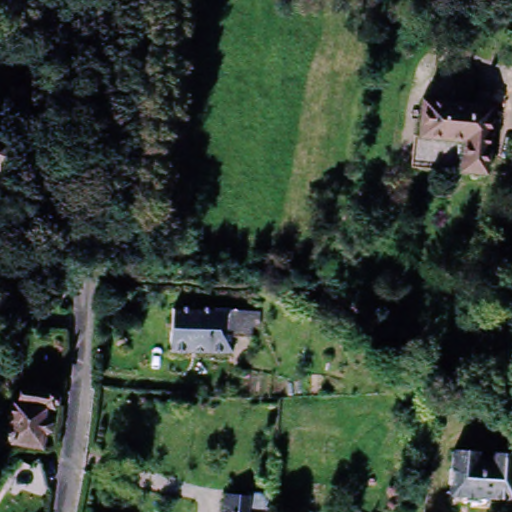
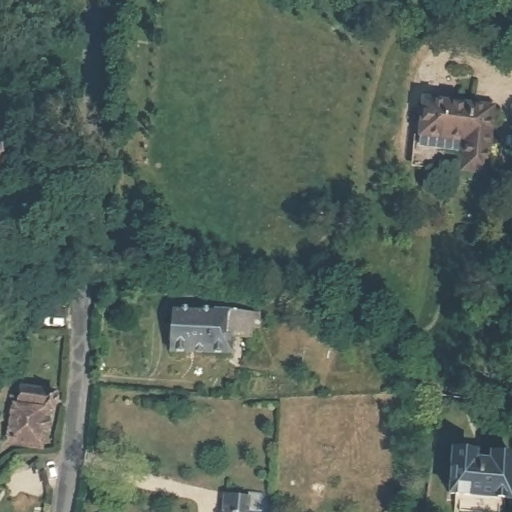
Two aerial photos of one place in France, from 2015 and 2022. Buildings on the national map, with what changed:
unchanged [(412,156),(418,95),(486,100),(480,161),(412,156)]
unchanged [(163,307),(249,308),(249,330),(237,330),(237,340),(222,340),(221,351),(161,350),(163,307)]
unchanged [(34,402),(36,382),(68,385),(66,393),(57,412),(53,434),(21,431),(25,402),(34,402)]
unchanged [(473,450),(472,462),(480,462),(478,495),(446,493),(450,447),(473,450)]
unchanged [(492,452),(512,452),(512,475),(510,497),(478,495),(480,462),(491,462),(492,452)]
unchanged [(232,505),(255,507),(257,503),(271,503),(272,512),(232,512),(232,510),(232,505)]

